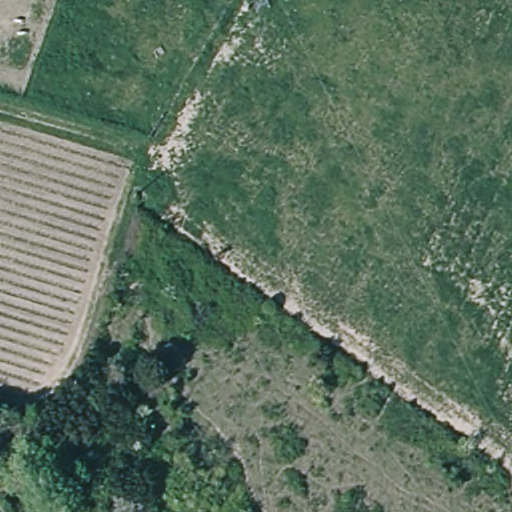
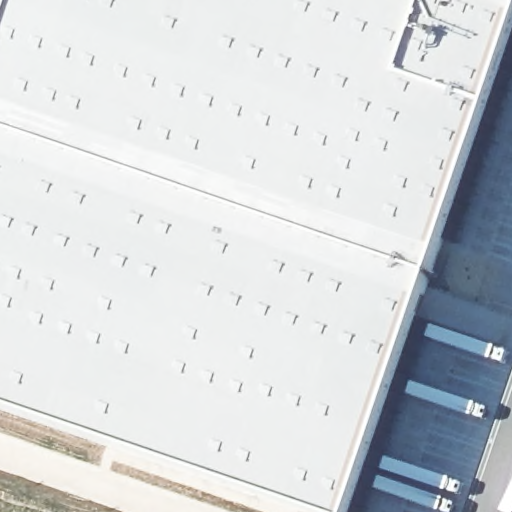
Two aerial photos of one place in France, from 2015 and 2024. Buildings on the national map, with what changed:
new [(352,512),(298,512),(0,411),(0,41),(14,0),(512,0),(512,42),(352,512)]
demolished [(75,406),(83,388),(105,399),(95,417),(75,406)]

